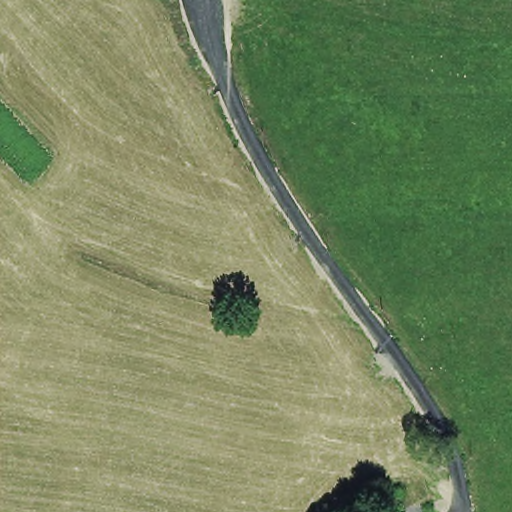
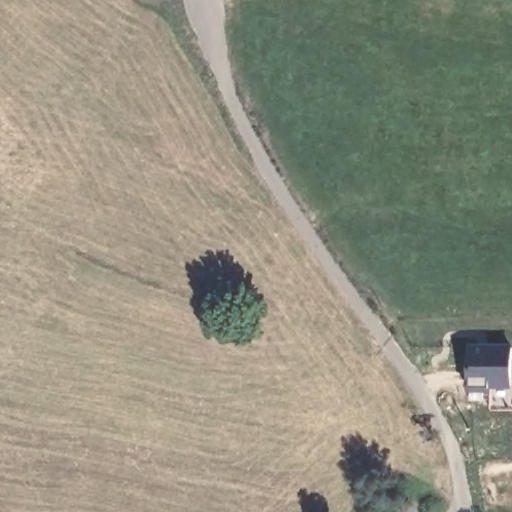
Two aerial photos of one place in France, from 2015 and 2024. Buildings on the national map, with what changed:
new [(507,345),(505,389),(486,388),(487,392),(460,392),(462,344),(507,345)]

